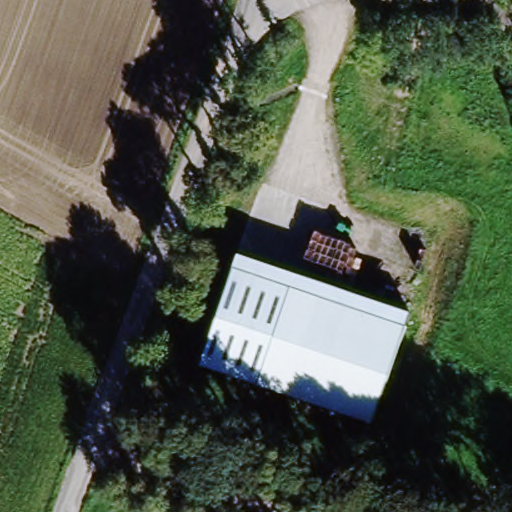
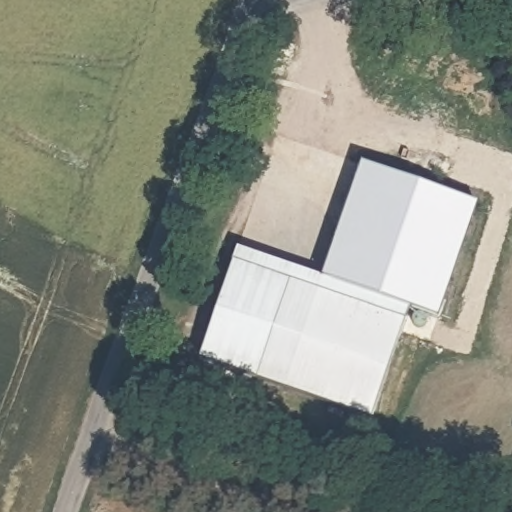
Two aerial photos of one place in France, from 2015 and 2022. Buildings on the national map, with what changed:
new [(361,166),(478,206),(439,320),(407,310),(321,281),(361,166)]
unchanged [(372,419),(204,362),(236,251),(407,310),(372,419)]

